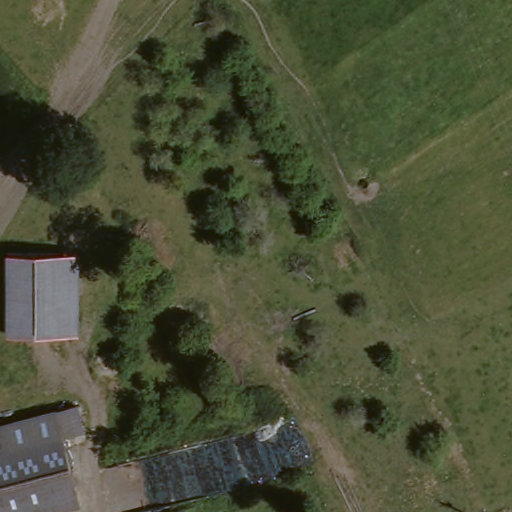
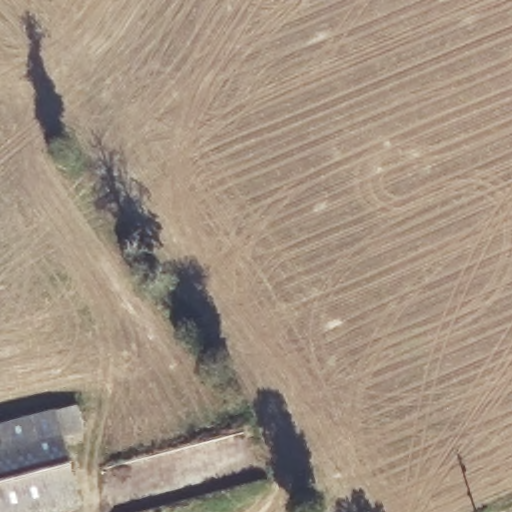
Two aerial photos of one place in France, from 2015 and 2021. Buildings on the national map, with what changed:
demolished [(78,332),(4,332),(4,250),(79,256),(78,332)]
unchanged [(56,412),(74,405),(83,432),(61,436),(79,507),(62,512),(0,512),(0,426),(56,412)]

